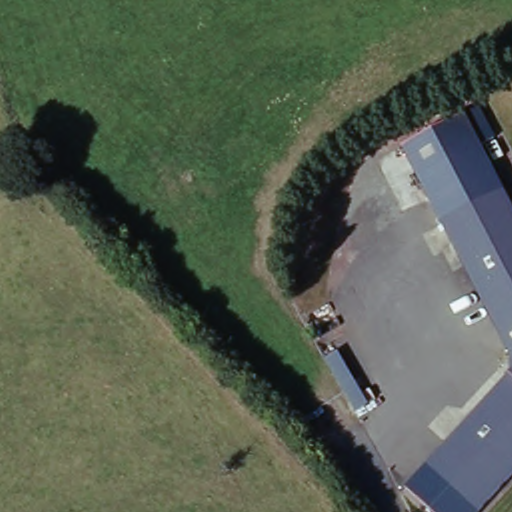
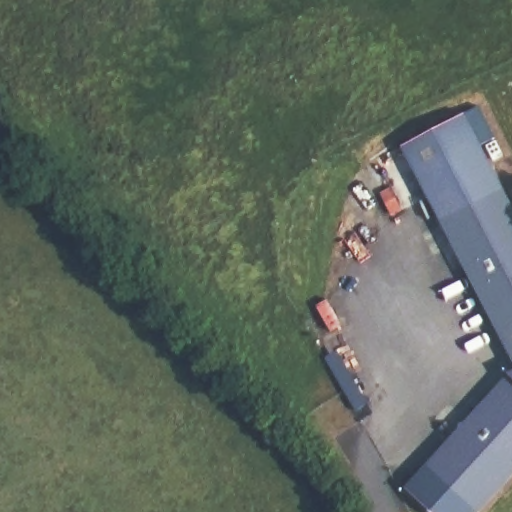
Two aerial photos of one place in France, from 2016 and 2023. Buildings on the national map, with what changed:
unchanged [(407,143),(465,111),(507,188),(444,220),(407,143)]
unchanged [(507,188),(512,198),(512,355),(444,220),(507,188)]
unchanged [(481,512),(480,512),(430,464),(512,375),(512,374),(512,478),(481,512)]
unchanged [(480,512),(436,512),(409,488),(430,464),(480,512)]

